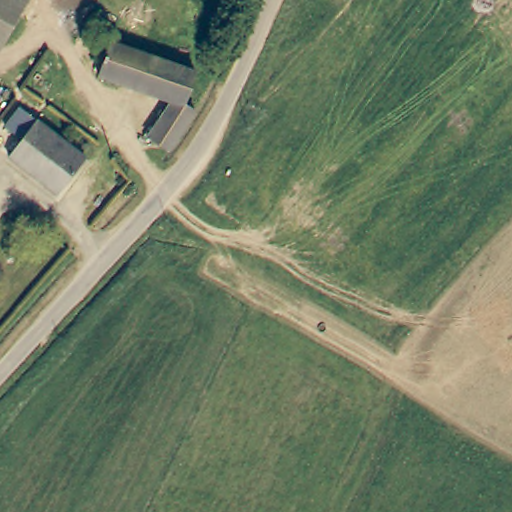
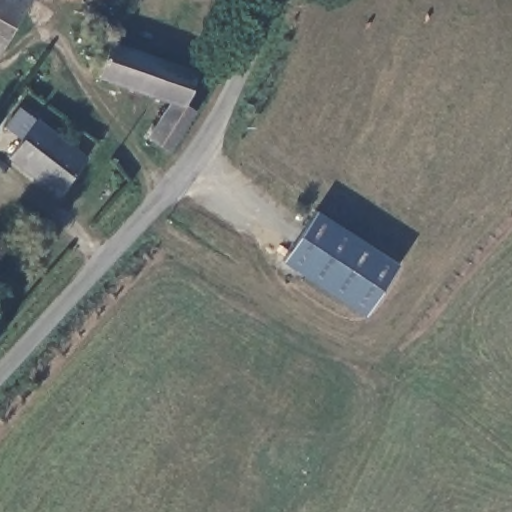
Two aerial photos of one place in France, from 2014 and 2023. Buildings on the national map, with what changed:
unchanged [(0,46),(0,0),(5,0),(24,10),(1,46),(0,46)]
unchanged [(31,0),(24,10),(5,0),(31,0)]
unchanged [(185,95),(184,103),(170,100),(94,84),(102,47),(190,65),(185,95)]
unchanged [(183,141),(175,138),(156,130),(170,100),(184,103),(185,95),(204,100),(183,141)]
unchanged [(89,158),(63,195),(12,159),(24,141),(10,131),(8,130),(21,110),(25,113),(89,158)]
new [(365,316),(282,261),(316,210),(398,265),(365,316)]

